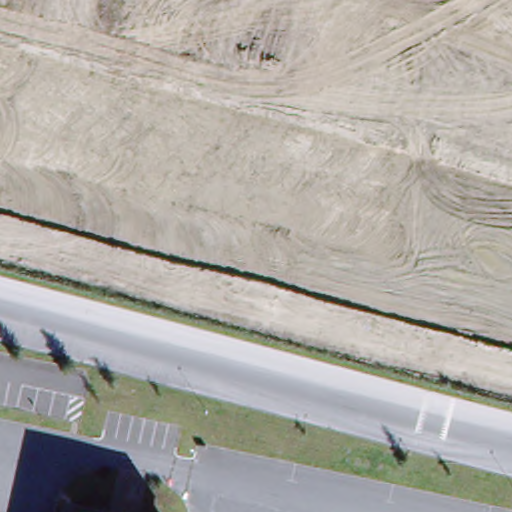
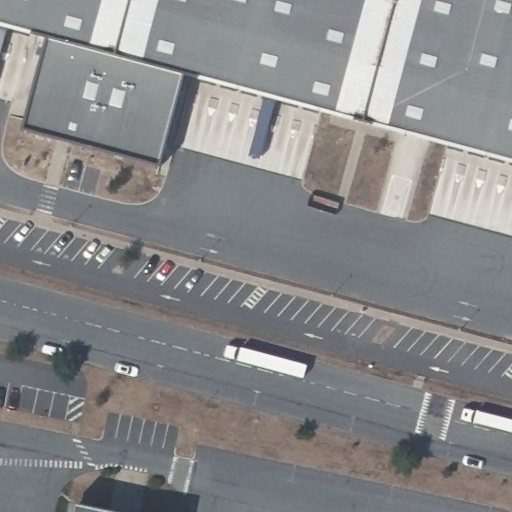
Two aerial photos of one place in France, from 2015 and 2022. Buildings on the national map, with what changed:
new [(182,71),(161,164),(21,125),(45,34),(0,22),(0,0),(512,0),(512,158),(182,71)]
unchanged [(75,502),(121,512),(73,512),(75,502)]

